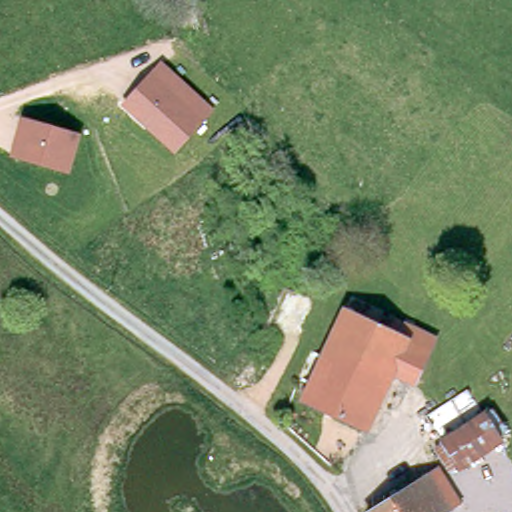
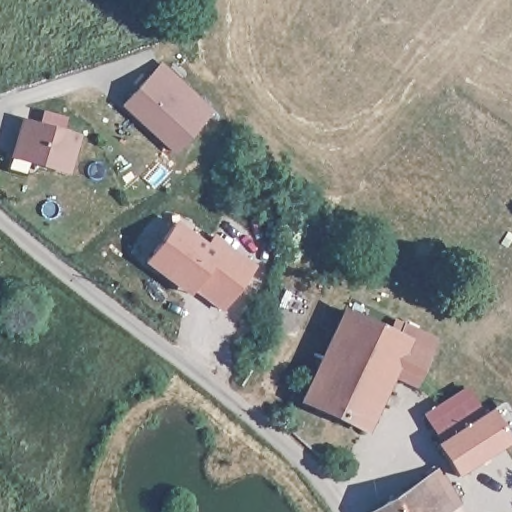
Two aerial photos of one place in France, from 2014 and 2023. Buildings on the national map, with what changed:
unchanged [(216,108),(175,154),(120,103),(162,60),(216,108)]
unchanged [(8,138),(15,119),(70,135),(59,171),(20,159),(4,155),(8,138)]
new [(176,287),(146,264),(175,225),(206,248),(214,239),(255,268),(223,311),(193,289),(189,296),(176,287)]
unchanged [(435,349),(417,388),(390,376),(365,432),(305,406),(313,389),(292,380),(305,353),(325,361),(345,310),(435,349)]
unchanged [(435,469),(425,450),(427,448),(480,417),(497,445),(444,477),(441,478),(435,469)]
unchanged [(441,478),(440,479),(454,502),(437,512),(363,512),(435,469),(441,478)]

